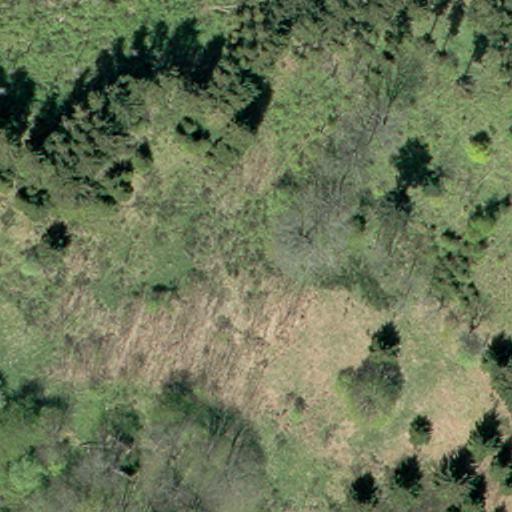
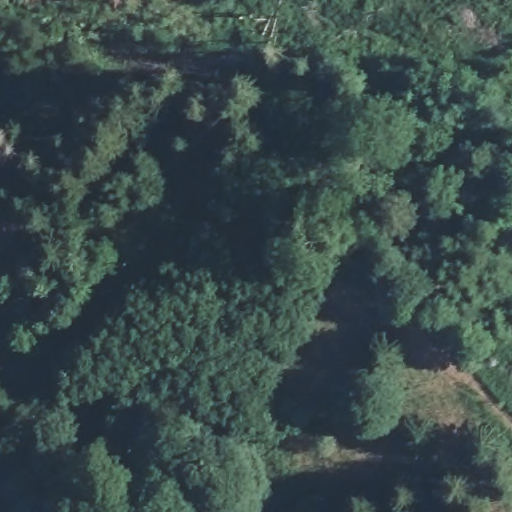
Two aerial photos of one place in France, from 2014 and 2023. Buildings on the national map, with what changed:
unchanged [(137,486),(101,458),(144,403),(165,420),(179,432),(174,438),(137,486)]

